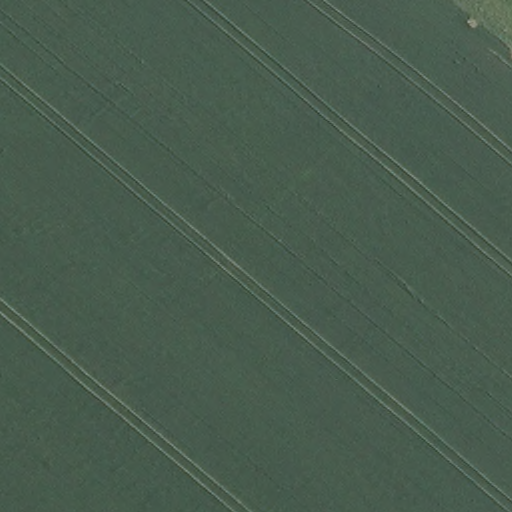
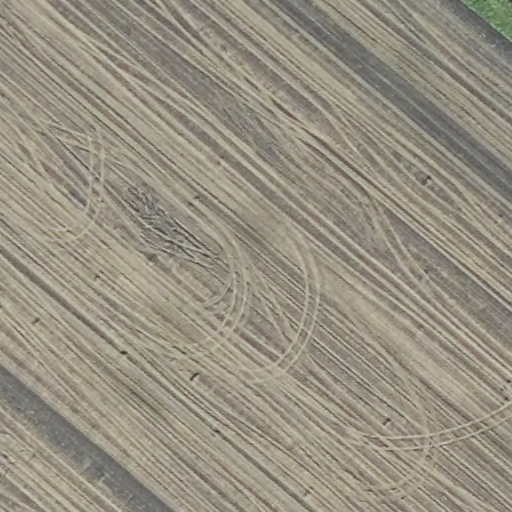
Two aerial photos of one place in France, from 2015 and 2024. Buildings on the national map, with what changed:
[]

